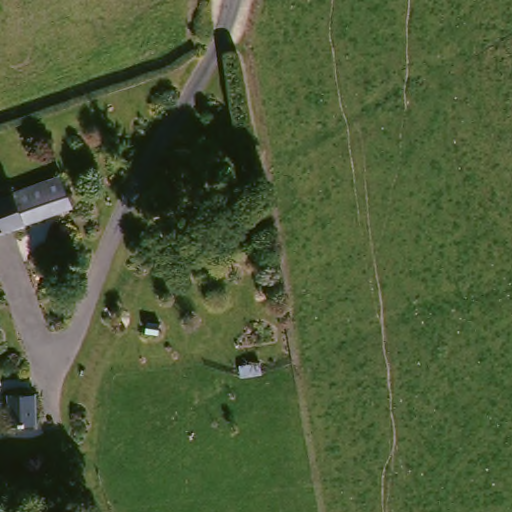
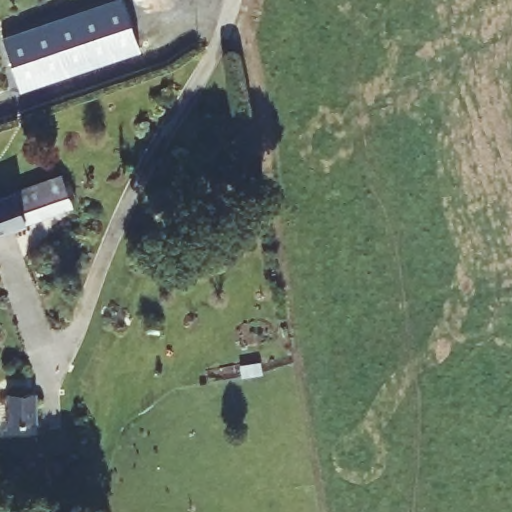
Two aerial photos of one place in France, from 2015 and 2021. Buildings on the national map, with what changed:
new [(122,0),(139,51),(19,91),(1,39),(114,0),(122,0)]
unchanged [(0,230),(0,196),(47,178),(59,208),(0,230)]
unchanged [(1,426),(2,394),(32,395),(31,427),(1,426)]

